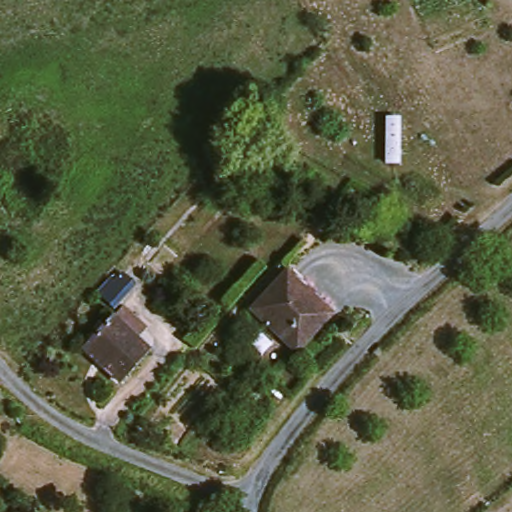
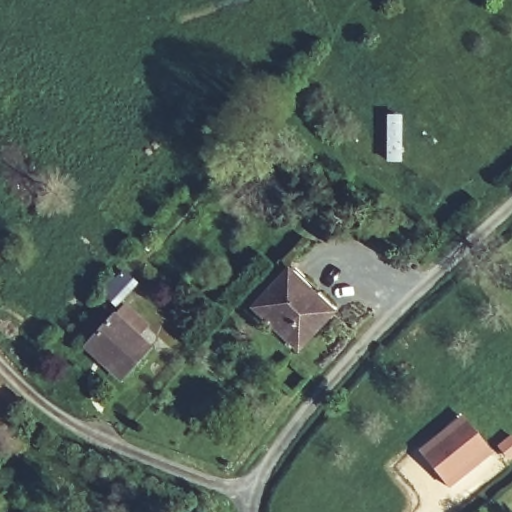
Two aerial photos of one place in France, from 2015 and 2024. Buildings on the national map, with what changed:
unchanged [(332,307),(292,347),(250,305),(290,266),(332,307)]
unchanged [(111,275),(115,277),(122,270),(135,281),(113,304),(97,290),(111,275)]
unchanged [(117,380),(82,347),(113,315),(125,303),(145,323),(133,335),(147,348),(117,380)]
new [(463,418),(469,425),(490,452),(447,487),(420,452),(447,430),(463,418)]

